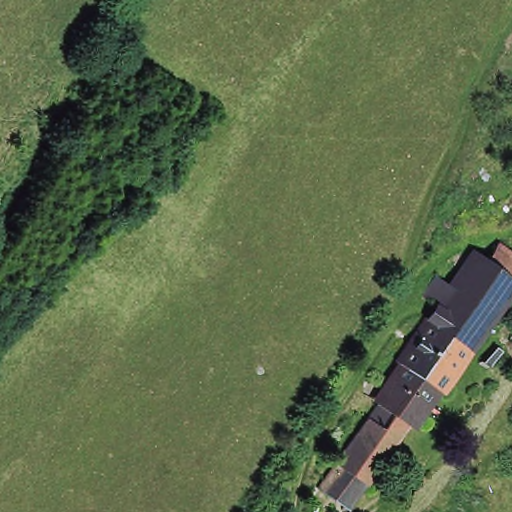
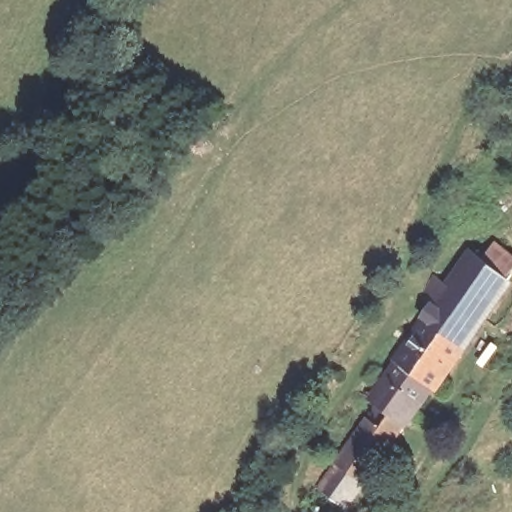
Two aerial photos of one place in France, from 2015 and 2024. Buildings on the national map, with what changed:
unchanged [(421,297),(437,276),(455,284),(477,251),(490,260),(505,242),(512,246),(512,281),(468,348),(431,324),(440,312),(421,297)]
unchanged [(342,461),(358,442),(371,425),(374,427),(385,411),(395,400),(401,391),(387,379),(394,362),(400,367),(431,324),(468,348),(451,375),(440,393),(409,428),(400,442),(386,461),(374,480),(365,492),(355,505),(350,510),(318,490),(323,485),(332,472),(342,461)]
unchanged [(415,421),(429,430),(418,440),(406,433),(415,421)]

